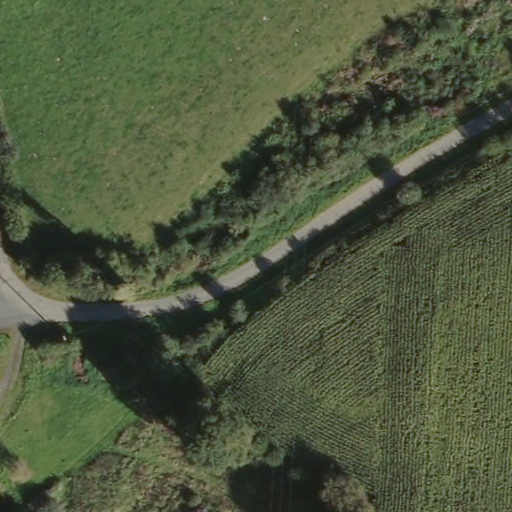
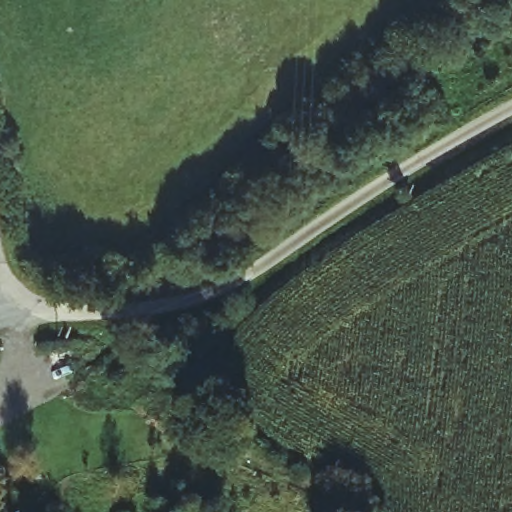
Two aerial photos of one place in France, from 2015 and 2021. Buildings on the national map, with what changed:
[]

